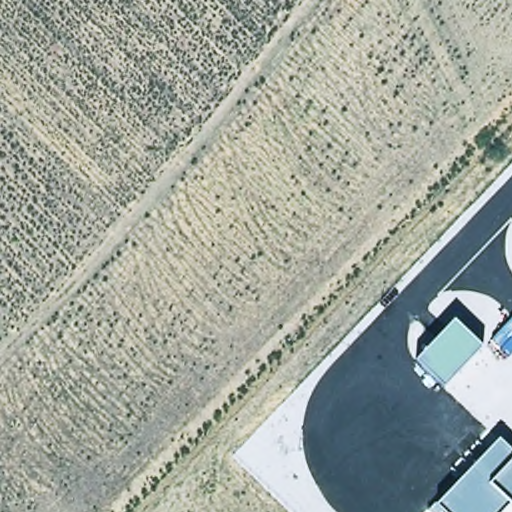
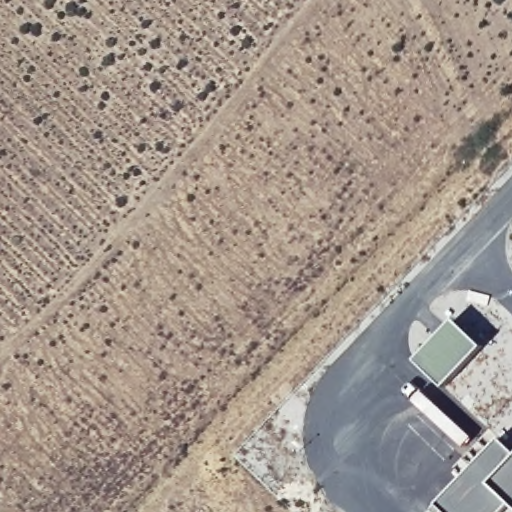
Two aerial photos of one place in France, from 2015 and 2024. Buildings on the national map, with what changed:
unchanged [(455,319),(482,347),(445,387),(417,360),(455,319)]
unchanged [(499,438),(512,452),(512,505),(510,503),(501,512),(446,512),(437,505),(499,438)]

